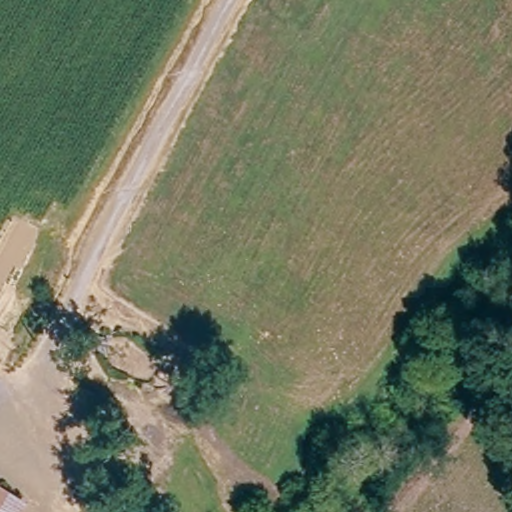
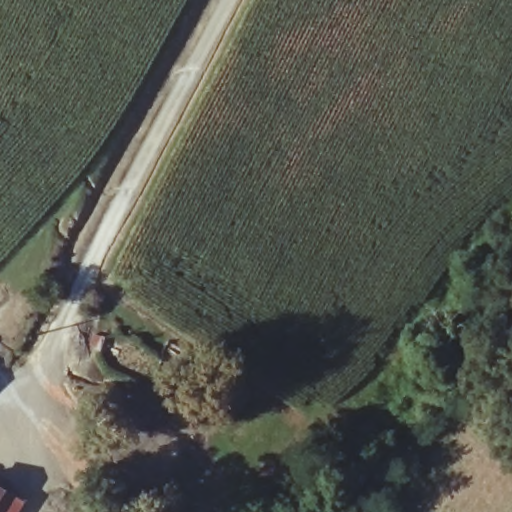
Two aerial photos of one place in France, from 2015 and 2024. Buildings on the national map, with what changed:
unchanged [(0,512),(0,489),(17,500),(9,512),(0,512)]

